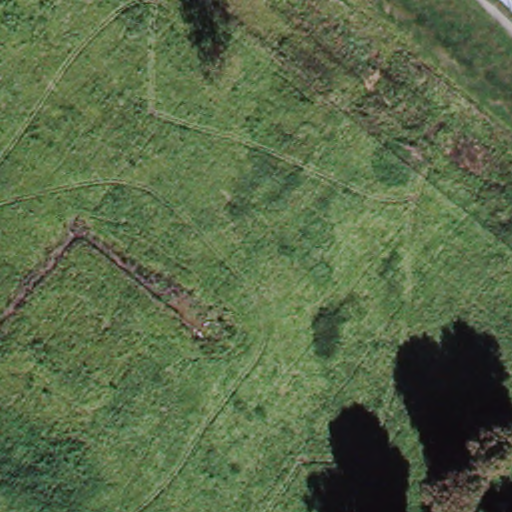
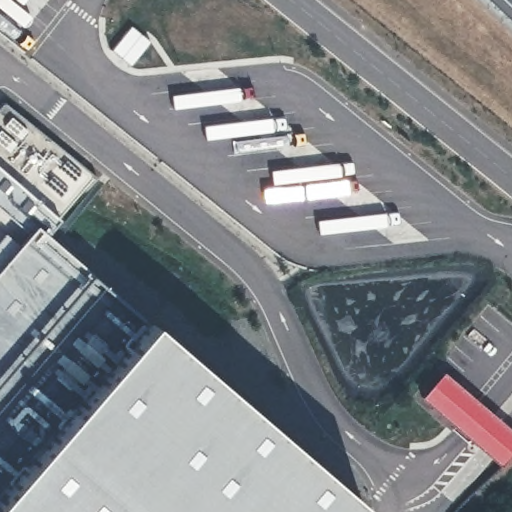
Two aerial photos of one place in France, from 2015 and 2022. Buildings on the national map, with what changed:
new [(35,227),(0,201),(0,166),(65,220),(56,240),(93,273),(146,317),(363,503),(355,512),(0,512),(0,270),(35,227)]
new [(512,453),(500,467),(419,398),(441,372),(512,430),(512,453)]

